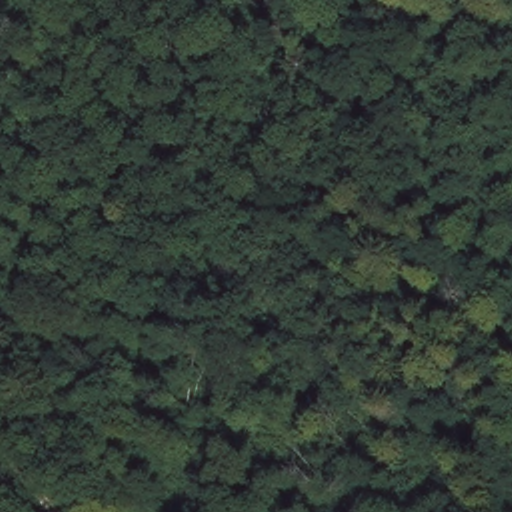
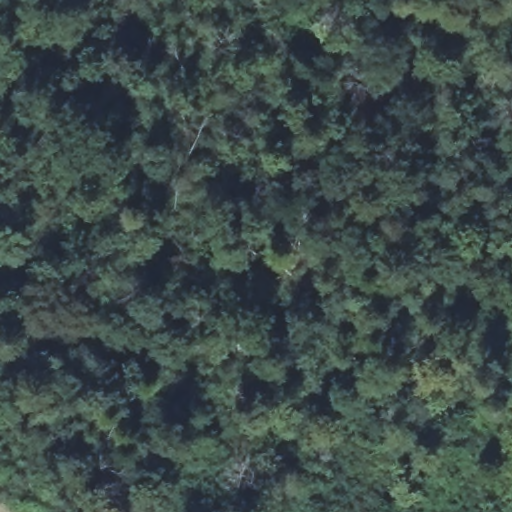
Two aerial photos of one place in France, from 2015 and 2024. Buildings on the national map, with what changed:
[]

